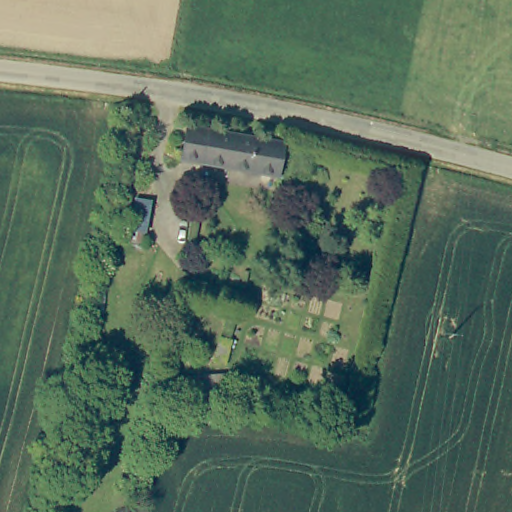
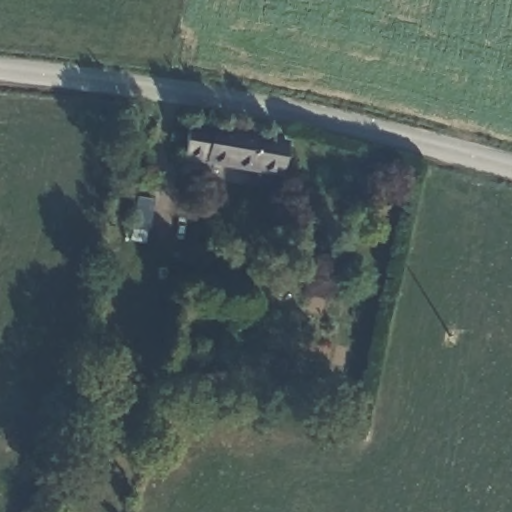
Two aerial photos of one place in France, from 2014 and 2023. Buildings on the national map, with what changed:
unchanged [(279,175),(180,159),(186,125),(285,142),(279,175)]
unchanged [(150,199),(144,230),(129,227),(135,196),(150,199)]
unchanged [(230,338),(225,360),(214,358),(220,336),(230,338)]
unchanged [(222,373),(221,389),(156,395),(159,378),(222,373)]

